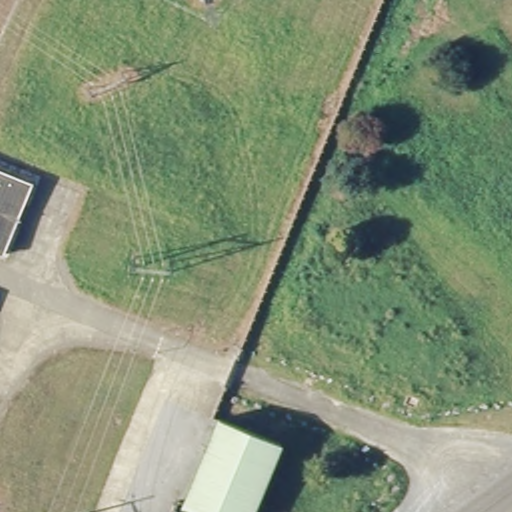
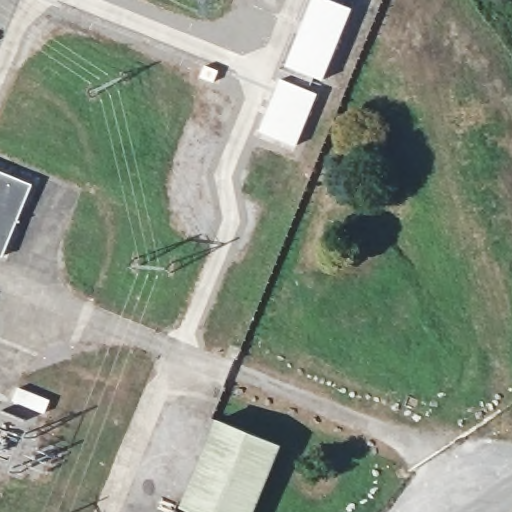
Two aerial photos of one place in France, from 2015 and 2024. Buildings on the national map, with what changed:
new [(330,0),(352,8),(323,80),(286,65),(313,0),(330,0)]
new [(281,79),(317,93),(296,146),(260,131),(281,79)]
unchanged [(0,256),(0,174),(33,188),(5,258),(0,256)]
unchanged [(247,512),(198,512),(180,504),(216,418),(277,444),(247,512)]

